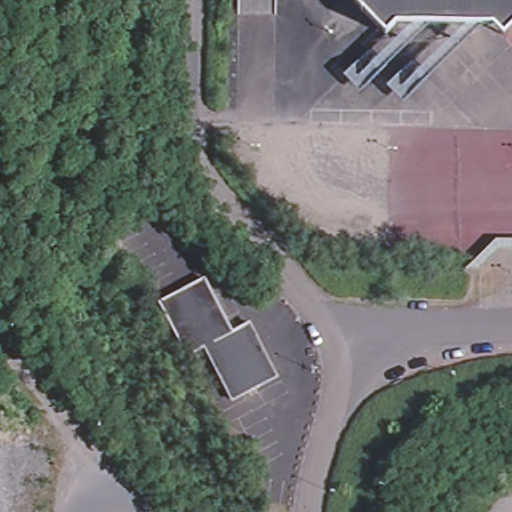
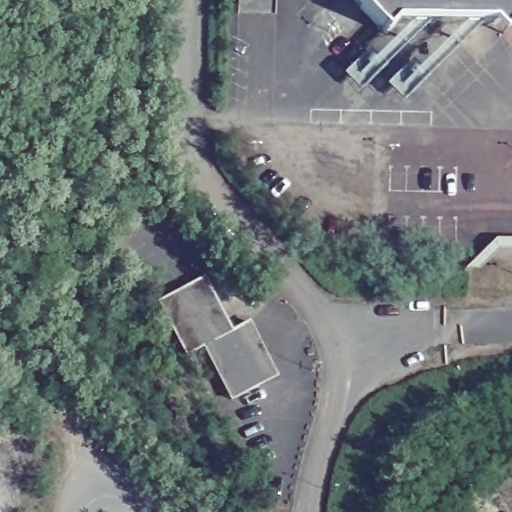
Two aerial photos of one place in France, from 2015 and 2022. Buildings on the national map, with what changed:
unchanged [(400,29),(385,39),(347,0),(512,0),(512,12),(491,31),(400,29)]
unchanged [(201,284),(232,333),(250,326),(275,380),(231,401),(201,351),(185,356),(159,305),(201,284)]

